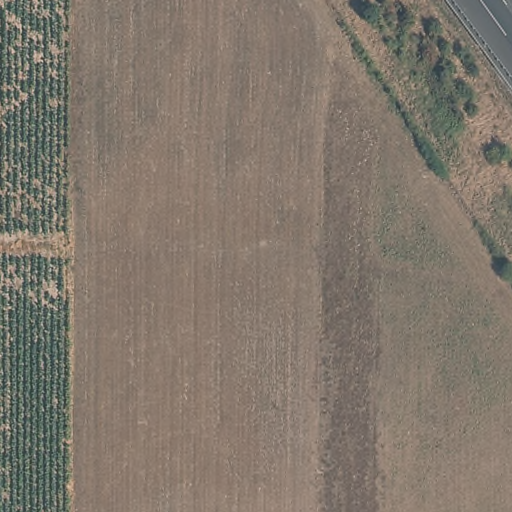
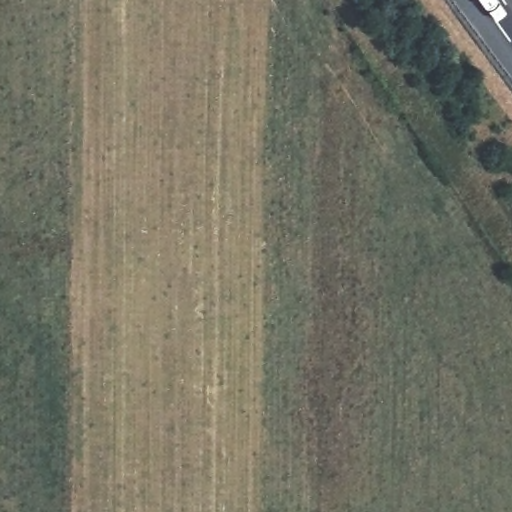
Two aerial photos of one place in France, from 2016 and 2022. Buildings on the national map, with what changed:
[]

